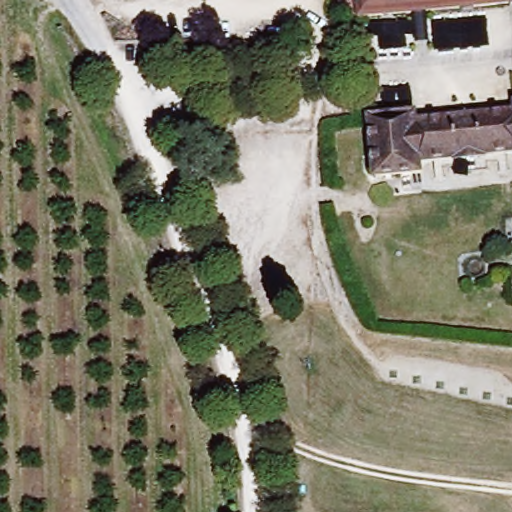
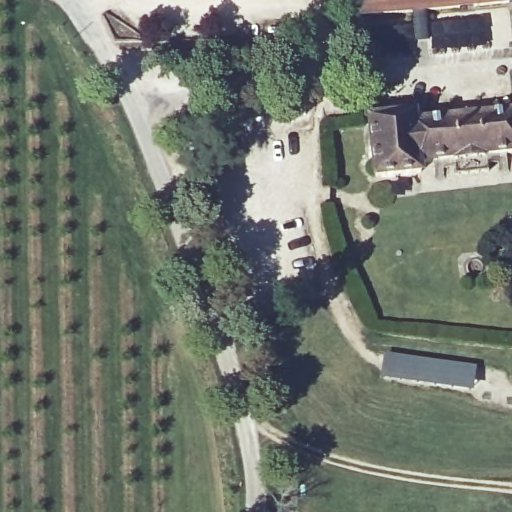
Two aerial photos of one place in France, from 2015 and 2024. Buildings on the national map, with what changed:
unchanged [(361,0),(512,0),(512,3),(362,16),(361,0)]
unchanged [(458,176),(456,160),(423,164),(424,171),(379,176),(373,118),(417,113),(418,121),(512,111),(512,154),(490,156),(492,172),(458,176)]
new [(476,366),(474,390),(382,378),(384,354),(476,366)]

